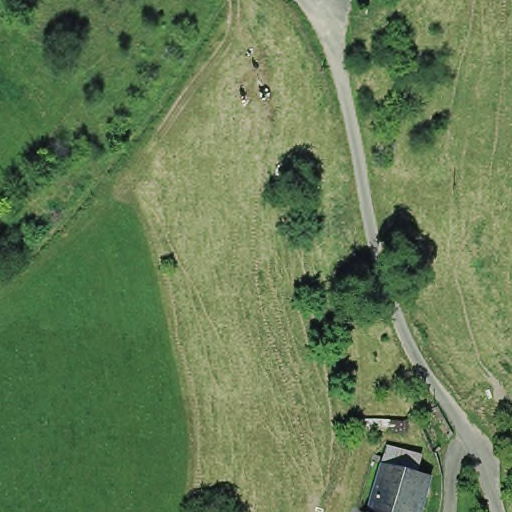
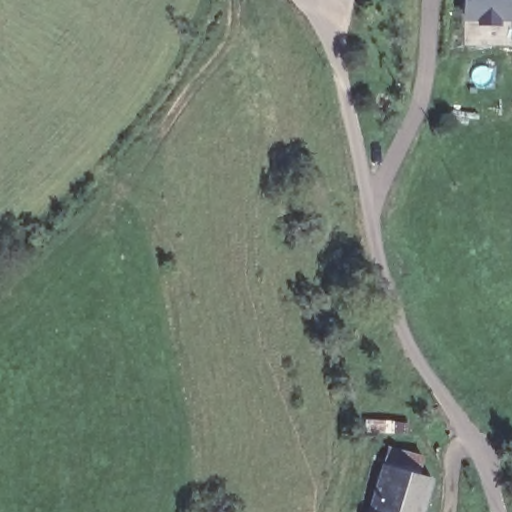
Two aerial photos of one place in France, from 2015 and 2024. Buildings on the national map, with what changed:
new [(499,25),(476,25),(476,21),(461,20),(462,0),(512,0),(512,21),(499,21),(499,25)]
unchanged [(421,512),(371,512),(386,461),(432,475),(421,512)]

